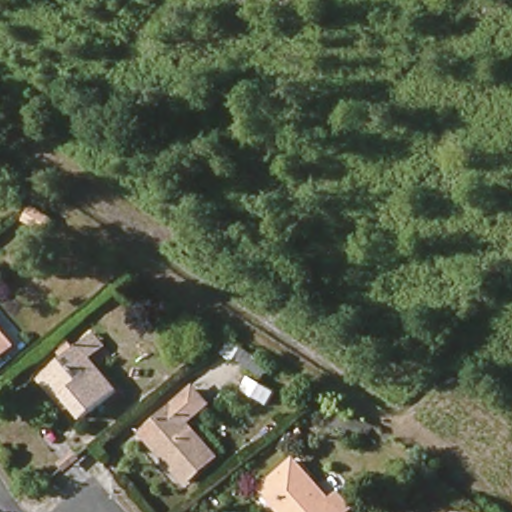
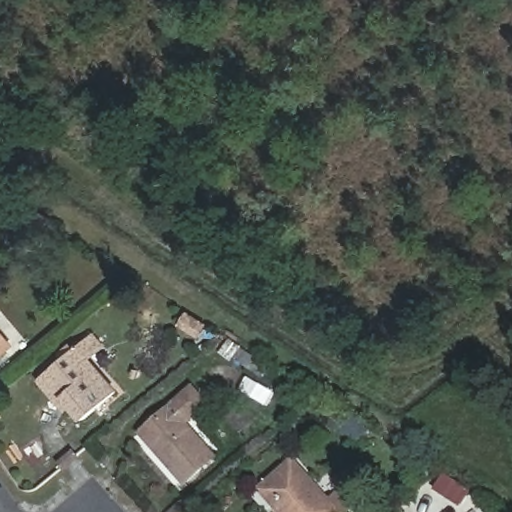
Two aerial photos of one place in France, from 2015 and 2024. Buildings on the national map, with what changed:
unchanged [(40,229),(25,219),(30,210),(45,220),(40,229)]
unchanged [(197,336),(180,325),(187,313),(205,324),(197,336)]
unchanged [(11,342),(0,351),(0,329),(11,342)]
unchanged [(49,378),(56,372),(88,346),(103,333),(115,347),(99,359),(126,392),(94,419),(83,405),(76,411),(49,378)]
unchanged [(268,367),(262,376),(236,358),(232,363),(220,354),(230,341),(268,367)]
unchanged [(191,484),(147,434),(198,390),(212,404),(190,423),(220,458),(191,484)]
unchanged [(358,440),(338,427),(335,431),(326,425),(336,412),(351,421),(355,415),(367,422),(370,424),(358,440)]
unchanged [(347,512),(281,512),(261,490),(293,462),(330,502),(336,496),(349,510),(347,512)]

